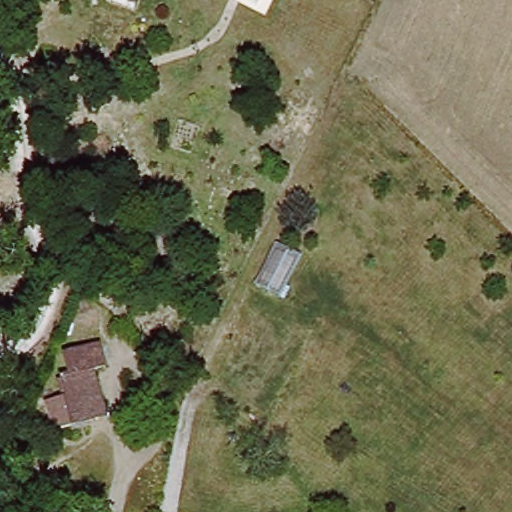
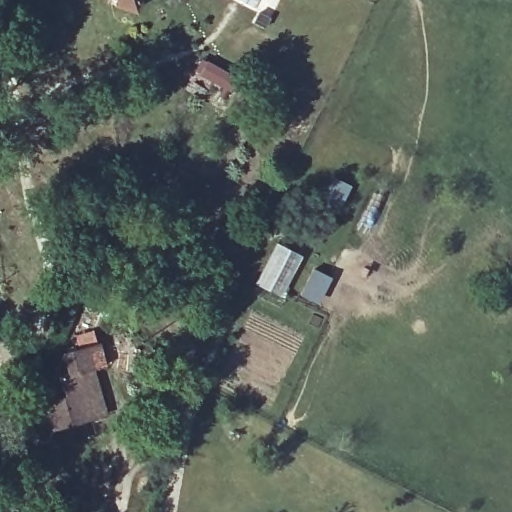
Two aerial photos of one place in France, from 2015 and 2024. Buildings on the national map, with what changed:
unchanged [(108,3),(109,0),(139,0),(132,14),(108,3)]
unchanged [(50,399),(70,397),(67,371),(78,370),(76,349),(106,346),(107,366),(99,368),(103,414),(52,420),(50,399)]

